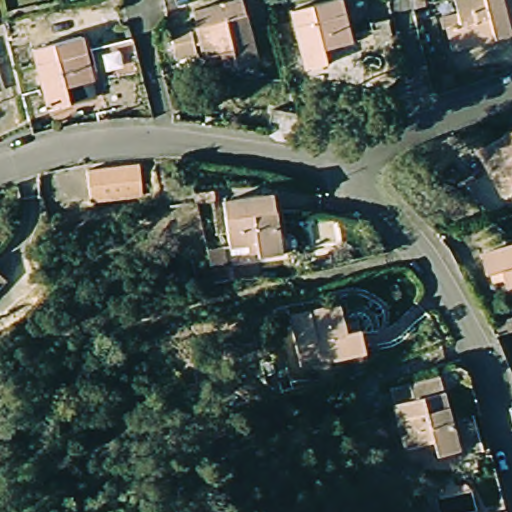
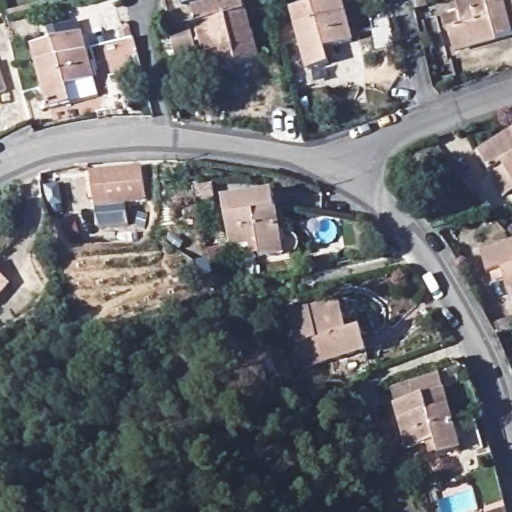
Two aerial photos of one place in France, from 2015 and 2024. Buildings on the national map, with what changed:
unchanged [(261,58),(212,70),(206,55),(183,61),(174,34),(195,26),(192,14),(240,0),(243,0),(261,58)]
unchanged [(343,0),(355,47),(328,54),(331,66),(310,71),(295,13),(343,0)]
unchanged [(467,28),(460,2),(468,0),(512,0),(512,39),(461,51),(455,30),(467,28)]
unchanged [(371,25),(387,21),(394,49),(378,54),(371,25)]
unchanged [(38,54),(84,40),(97,86),(73,91),(77,106),(53,114),(38,54)]
unchanged [(6,90),(0,92),(0,73),(6,90)]
unchanged [(491,177),(480,159),(512,139),(512,184),(504,170),(491,177)]
unchanged [(93,170),(143,165),(147,191),(95,199),(93,170)]
unchanged [(225,199),(272,195),(279,256),(254,258),(253,245),(229,247),(225,199)]
unchanged [(488,278),(482,254),(512,247),(512,299),(510,300),(505,275),(488,278)]
unchanged [(7,280),(0,287),(0,273),(7,280)]
unchanged [(291,317),(337,307),(345,337),(360,335),(364,352),(302,367),(291,317)]
unchanged [(397,403),(418,398),(413,384),(441,376),(461,452),(433,458),(429,442),(409,447),(397,403)]
unchanged [(360,417),(378,411),(389,447),(369,452),(360,417)]
unchanged [(503,502),(505,512),(473,512),(473,510),(503,502)]

